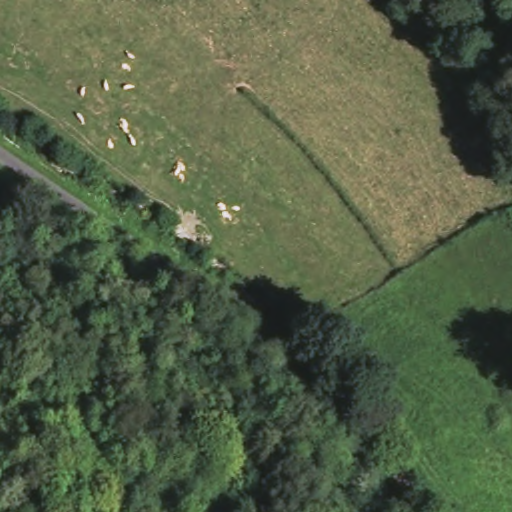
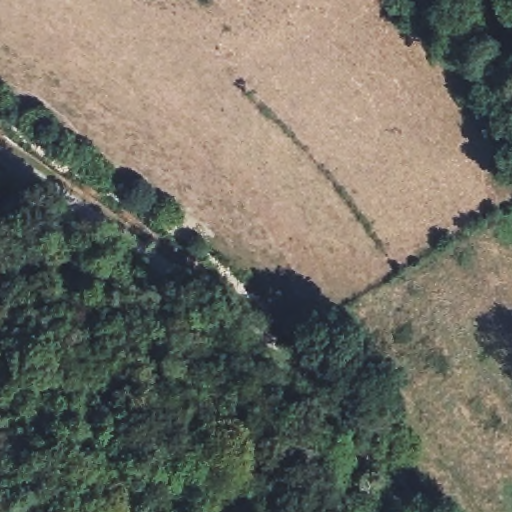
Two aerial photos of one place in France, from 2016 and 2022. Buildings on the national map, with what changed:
unchanged [(0,225),(0,171),(28,192),(2,227),(0,225)]

